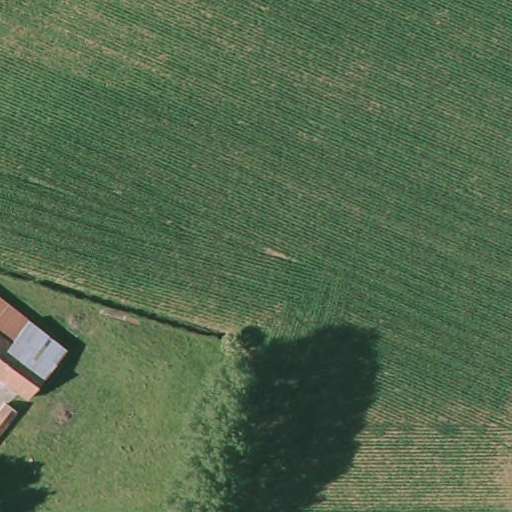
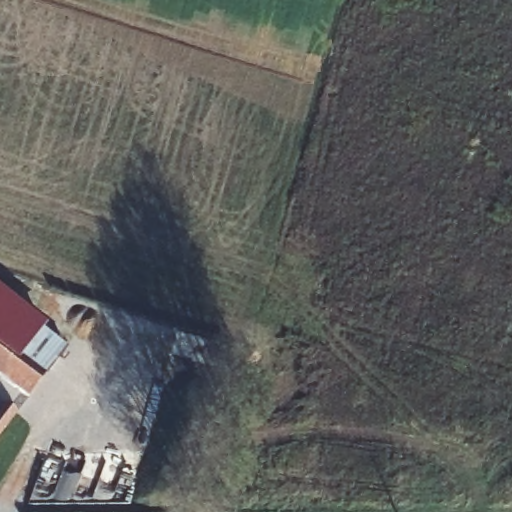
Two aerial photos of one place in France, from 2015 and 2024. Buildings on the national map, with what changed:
unchanged [(42,387),(0,357),(0,315),(61,360),(42,387)]
unchanged [(20,404),(0,429),(0,407),(8,397),(20,404)]

